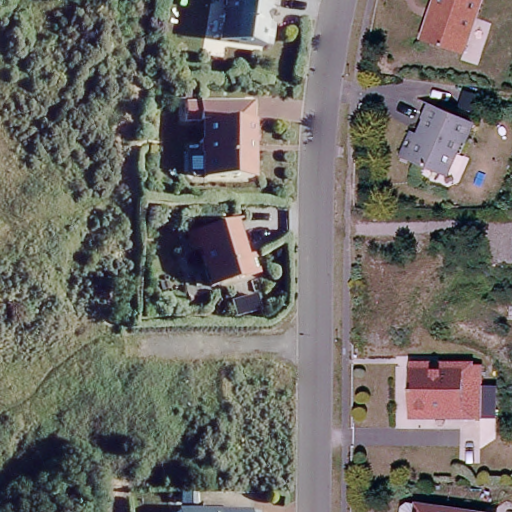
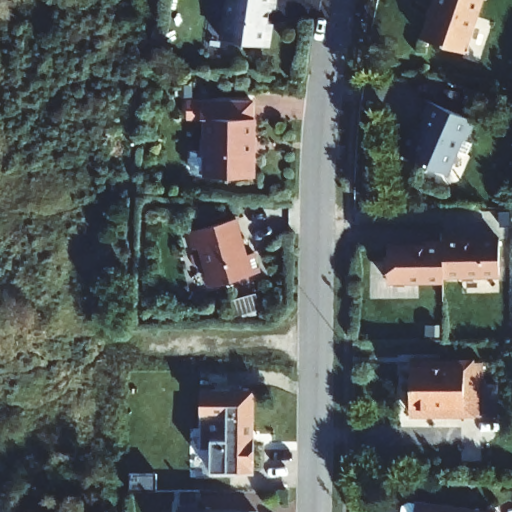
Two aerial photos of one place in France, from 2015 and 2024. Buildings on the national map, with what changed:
unchanged [(227,0),(277,0),(277,5),(271,4),(268,20),(272,27),(270,39),(261,43),(222,37),(227,0)]
unchanged [(462,49),(418,35),(430,0),(478,0),(462,49)]
unchanged [(252,176),(206,177),(206,156),(202,151),(202,140),(205,135),(205,119),(200,119),(200,101),(252,101),(252,176)]
unchanged [(473,121),(460,153),(454,151),(447,168),(438,173),(397,155),(407,130),(417,134),(423,121),(419,120),(427,102),(473,121)]
unchanged [(241,218),(250,255),(258,253),(263,273),(215,285),(205,247),(199,248),(194,230),(241,218)]
new [(447,243),(462,242),(462,245),(500,243),(502,278),(447,280),(447,243)]
new [(447,285),(392,287),(391,252),(427,251),(427,248),(447,248),(447,280),(447,285)]
unchanged [(405,409),(406,360),(480,361),(480,417),(460,417),(405,417),(405,409)]
new [(253,445),(243,445),(243,473),(210,472),(210,448),(200,448),(200,389),(253,389),(253,445)]
unchanged [(407,500),(484,512),(400,512),(401,504),(407,500)]
unchanged [(258,508),(258,512),(177,512),(177,508),(258,508)]

